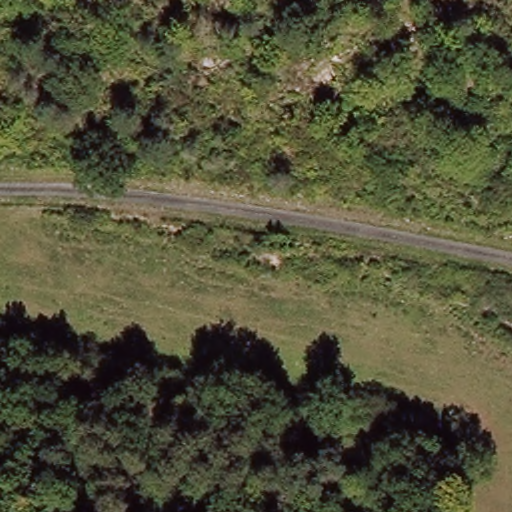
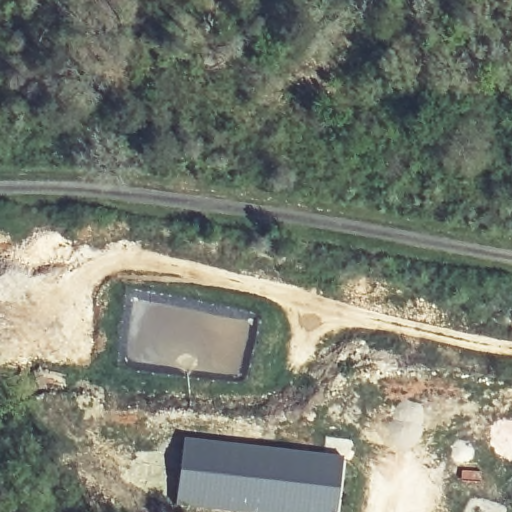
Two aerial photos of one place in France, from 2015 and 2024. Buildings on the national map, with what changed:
new [(247,512),(179,505),(186,440),(344,459),(338,512),(247,512)]

